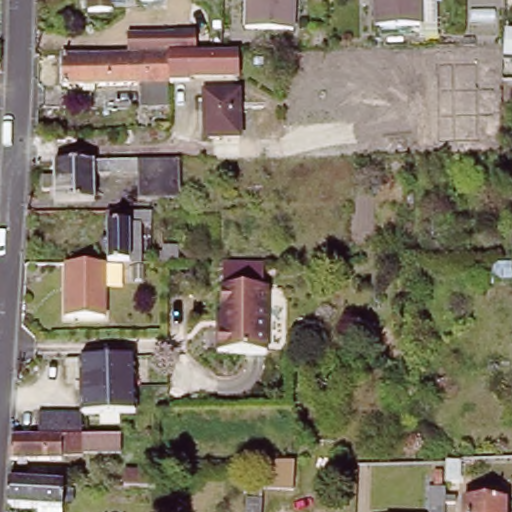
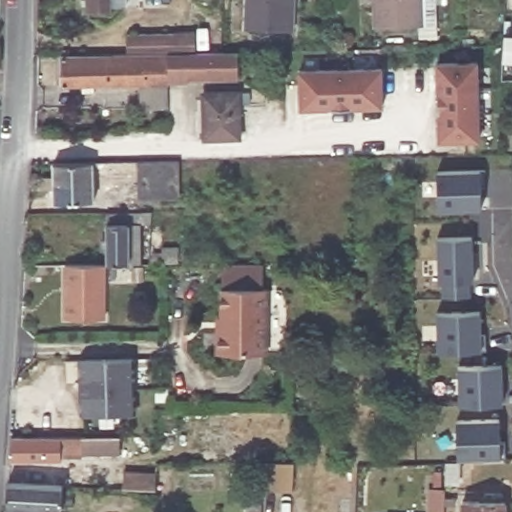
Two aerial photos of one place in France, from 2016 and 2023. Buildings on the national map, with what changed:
unchanged [(85,10),(85,0),(106,0),(107,10),(85,10)]
unchanged [(245,29),(247,0),(295,0),(293,31),(245,29)]
unchanged [(373,29),(373,0),(435,0),(435,28),(373,29)]
new [(505,32),(512,33),(512,61),(502,60),(505,32)]
unchanged [(80,89),(61,89),(60,58),(127,56),(127,39),(173,38),(192,38),(192,56),(196,56),(237,54),(237,78),(189,78),(189,81),(183,81),(182,71),(183,89),(168,89),(170,110),(142,110),(142,89),(92,89),(93,97),(80,97),(80,89)]
new [(474,60),(475,140),(440,141),(439,61),(474,60)]
new [(383,71),(384,106),(307,107),(306,72),(383,71)]
new [(240,139),(202,138),(201,90),(240,90),(240,139)]
demolished [(244,95),(244,142),(263,142),(263,159),(215,160),(215,138),(210,138),(210,94),(244,95)]
unchanged [(180,163),(180,200),(153,200),(139,200),(138,174),(94,176),(95,204),(55,205),(55,192),(43,192),(43,180),(54,179),(53,166),(155,163),(180,163)]
new [(437,170),(480,171),(482,209),(438,210),(437,170)]
unchanged [(153,214),(152,266),(142,266),(108,266),(108,215),(153,214)]
new [(437,238),(473,237),(474,281),(468,280),(469,296),(440,297),(438,281),(437,238)]
unchanged [(105,266),(105,321),(67,322),(66,267),(105,266)]
unchanged [(226,290),(271,290),(271,356),(222,355),(221,332),(221,320),(225,319),(226,290)]
new [(480,314),(480,351),(437,352),(437,312),(480,314)]
unchanged [(135,355),(135,411),(82,413),(82,434),(39,434),(40,409),(82,410),(82,356),(135,355)]
new [(458,366),(502,365),(502,404),(459,404),(458,366)]
new [(500,419),(501,457),(457,458),(456,420),(500,419)]
unchanged [(39,434),(82,434),(120,435),(120,455),(63,454),(63,459),(27,459),(26,464),(18,465),(18,459),(10,459),(12,434),(14,434),(39,434)]
demolished [(457,458),(457,479),(443,479),(444,458),(457,458)]
new [(457,479),(443,479),(444,458),(457,458),(457,479)]
unchanged [(290,459),(290,490),(266,490),(267,459),(290,459)]
unchanged [(161,469),(160,487),(133,487),(135,469),(161,469)]
unchanged [(7,512),(9,486),(62,488),(62,492),(61,512),(18,512),(7,512)]
unchanged [(427,486),(442,487),(442,512),(427,512),(427,486)]
unchanged [(262,498),(262,512),(245,512),(246,496),(262,498)]
unchanged [(501,503),(501,512),(461,512),(462,501),(501,503)]

